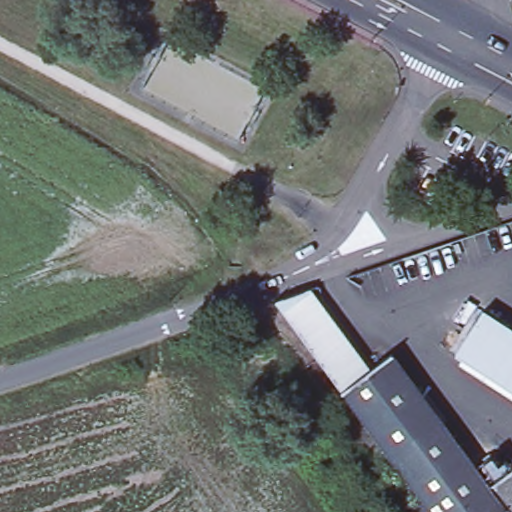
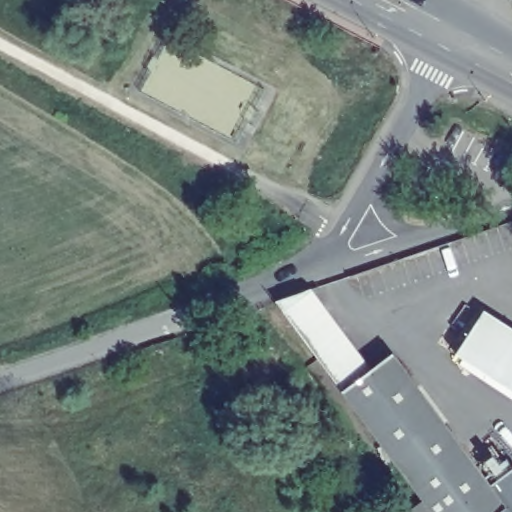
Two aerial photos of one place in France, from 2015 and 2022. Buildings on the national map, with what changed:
unchanged [(313,290),(372,370),(395,353),(446,423),(425,441),(396,464),(278,302),(313,290)]
unchanged [(456,351),(485,310),(512,329),(512,389),(456,351)]

